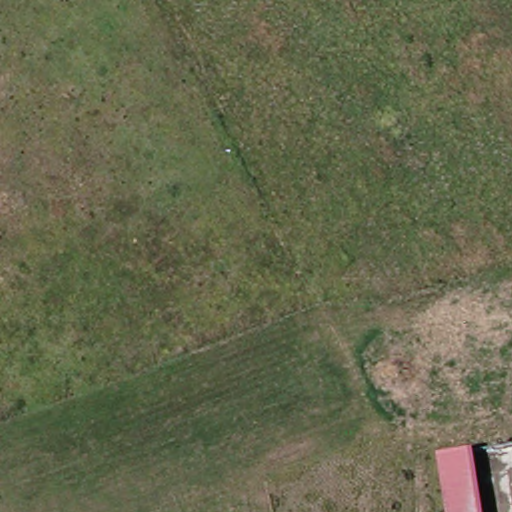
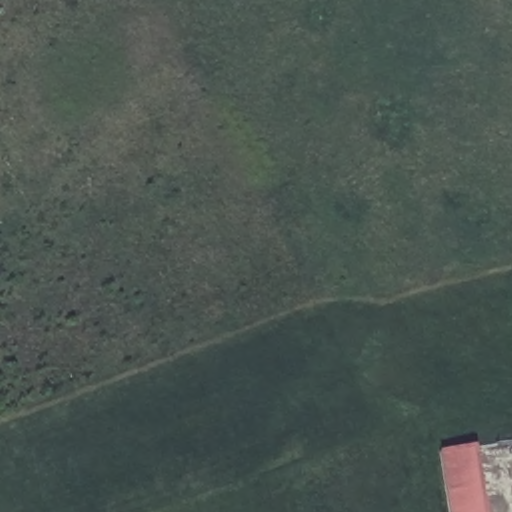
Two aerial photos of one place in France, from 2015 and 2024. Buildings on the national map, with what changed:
unchanged [(474,484),(476,512),(441,512),(436,457),(471,454),(474,484)]

